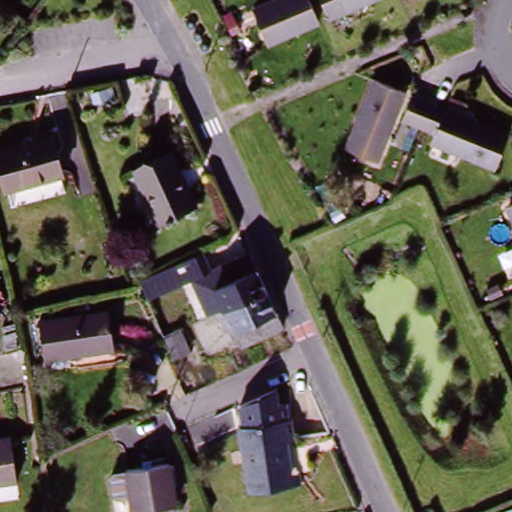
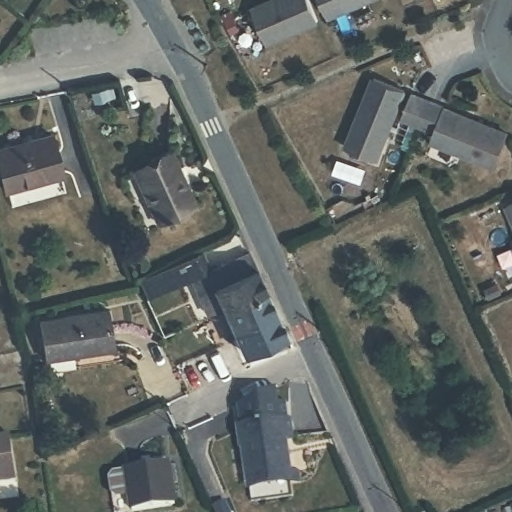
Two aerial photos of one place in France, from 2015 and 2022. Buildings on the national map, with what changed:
unchanged [(267,46),(253,12),(282,0),(306,0),(317,25),(267,46)]
unchanged [(362,0),(327,14),(321,0),(362,0)]
unchanged [(345,149),(377,82),(406,95),(374,163),(345,149)]
unchanged [(495,177),(432,147),(434,136),(417,129),(403,124),(414,100),(428,106),(446,115),(510,145),(495,177)]
unchanged [(0,180),(0,146),(50,131),(65,177),(4,194),(0,180)]
unchanged [(131,169),(174,150),(197,207),(154,224),(131,169)]
unchanged [(512,209),(512,221),(508,211),(512,209)]
unchanged [(266,281),(224,300),(223,296),(206,303),(192,270),(250,244),(266,281)]
unchanged [(220,307),(227,305),(224,300),(266,281),(276,302),(283,317),(241,336),(233,320),(227,323),(220,307)]
unchanged [(44,363),(36,320),(110,305),(116,352),(44,363)]
unchanged [(231,421),(294,418),(297,487),(237,492),(231,421)]
unchanged [(0,485),(0,435),(15,433),(16,482),(0,485)]
unchanged [(121,466),(173,462),(180,510),(151,512),(129,512),(121,466)]

